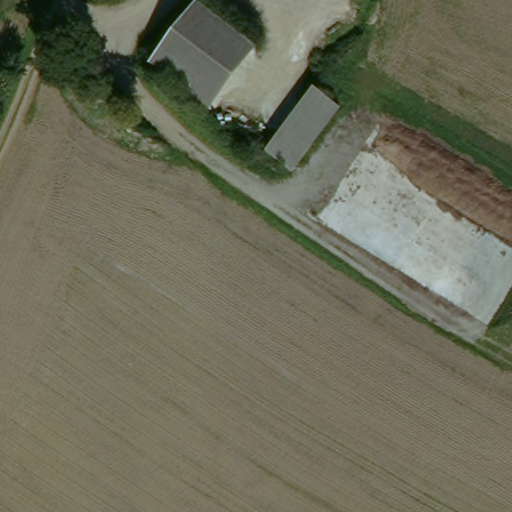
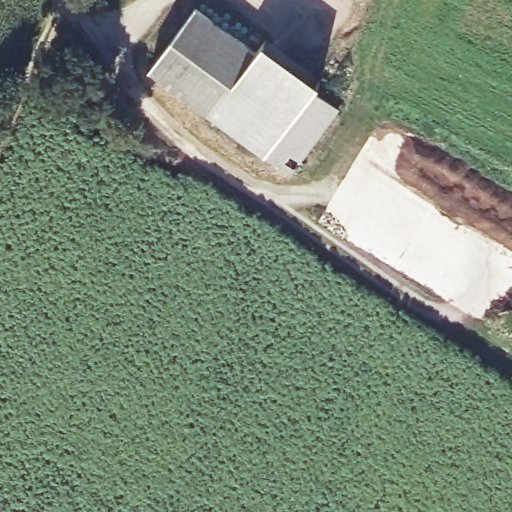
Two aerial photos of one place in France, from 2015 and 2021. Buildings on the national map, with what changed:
unchanged [(255,52),(211,110),(150,64),(195,5),(255,52)]
new [(209,114),(211,110),(255,52),(266,39),(320,81),(313,90),(265,153),(209,114)]
unchanged [(313,90),(338,108),(290,172),(265,153),(313,90)]

